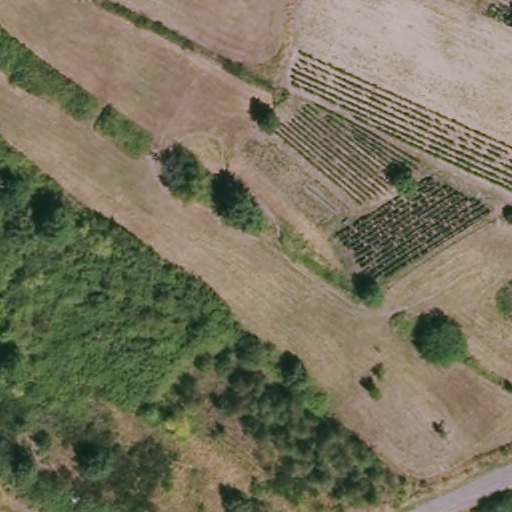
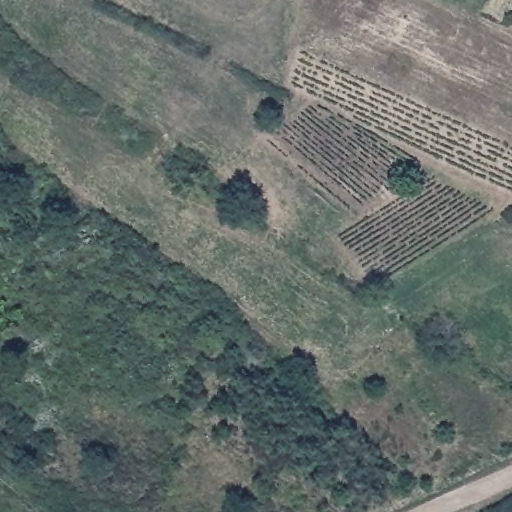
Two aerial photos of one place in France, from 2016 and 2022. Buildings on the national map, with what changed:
[]

